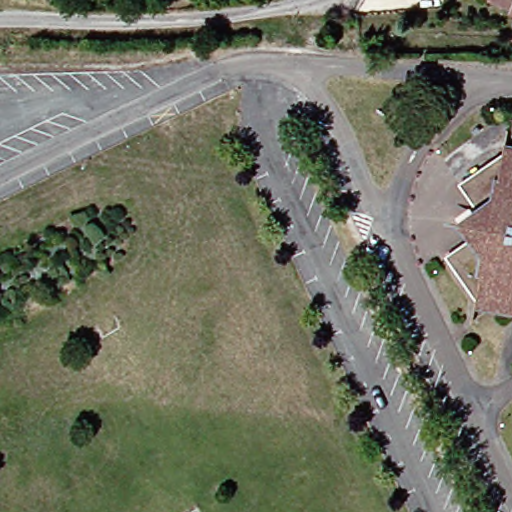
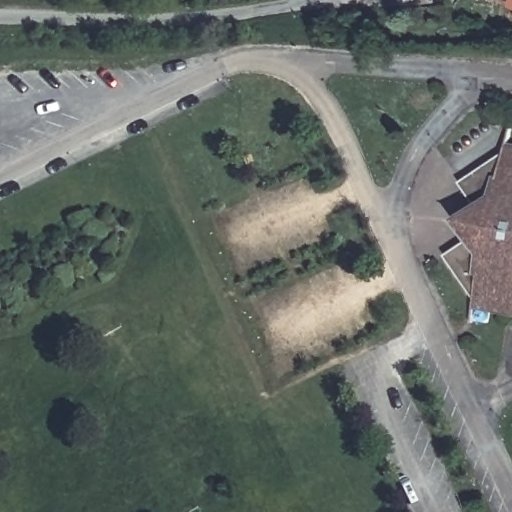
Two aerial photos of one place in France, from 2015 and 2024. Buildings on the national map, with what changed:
unchanged [(505,0),(512,0),(512,3),(505,0)]
unchanged [(487,298),(454,256),(481,235),(486,210),(468,182),(512,152),(512,303),(487,298)]

